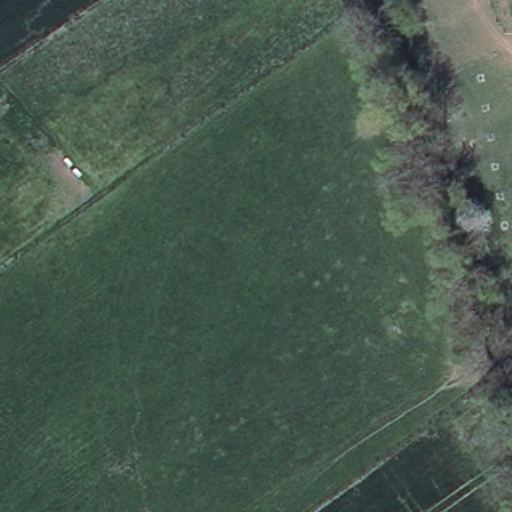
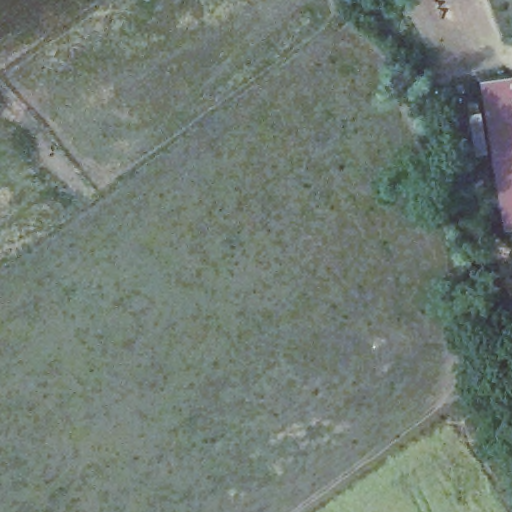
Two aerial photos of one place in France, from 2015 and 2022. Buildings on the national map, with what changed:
new [(503,226),(479,77),(512,72),(512,225),(503,226)]

